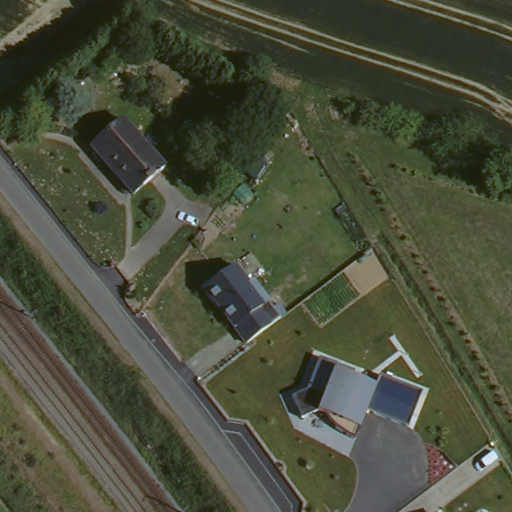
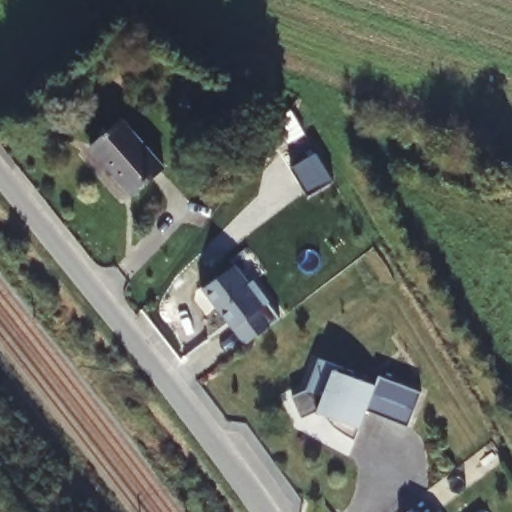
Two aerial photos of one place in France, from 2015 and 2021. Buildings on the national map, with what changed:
unchanged [(88,148),(126,114),(170,162),(132,197),(88,148)]
new [(317,157),(333,183),(307,199),(291,173),(317,157)]
unchanged [(237,266),(245,280),(253,277),(273,301),(269,304),(278,320),(247,344),(202,288),(237,266)]
unchanged [(310,389),(320,362),(335,369),(375,386),(378,377),(422,395),(411,426),(371,411),(360,430),(320,413),(306,416),(297,393),(310,389)]

